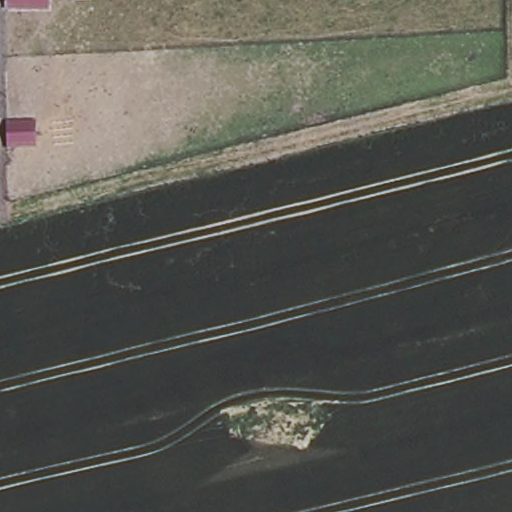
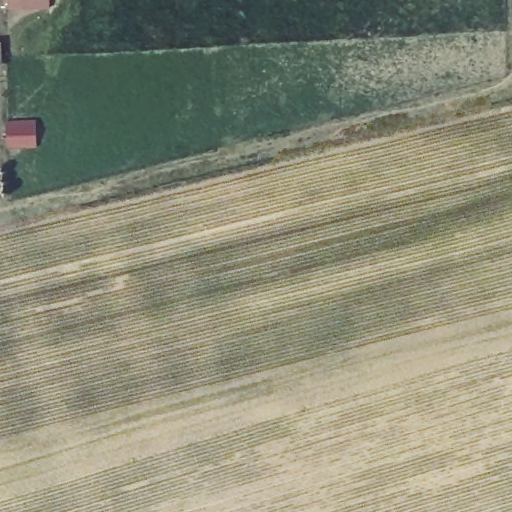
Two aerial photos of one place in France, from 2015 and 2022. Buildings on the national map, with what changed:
unchanged [(7,0),(51,0),(51,10),(7,11),(7,0)]
unchanged [(6,120),(38,118),(40,149),(6,150),(6,120)]

